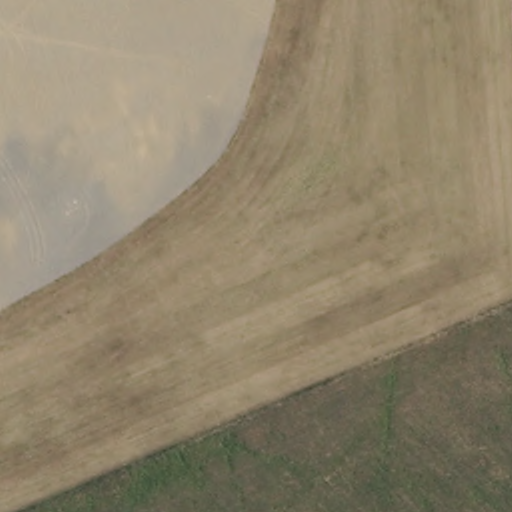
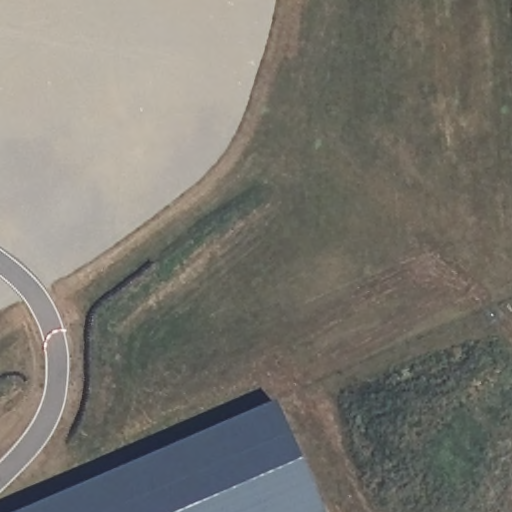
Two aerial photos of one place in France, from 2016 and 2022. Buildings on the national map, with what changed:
new [(266,404),(312,512),(17,512),(266,404)]

